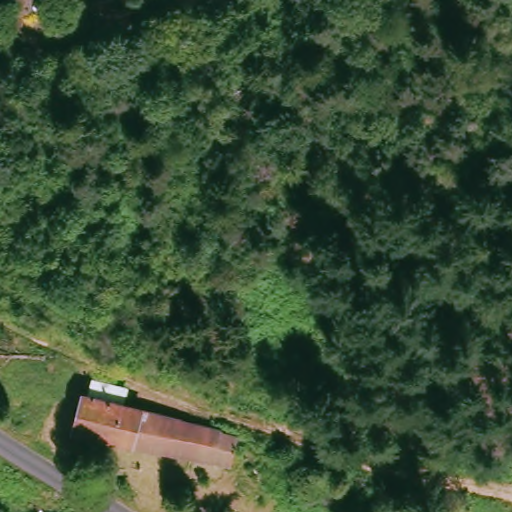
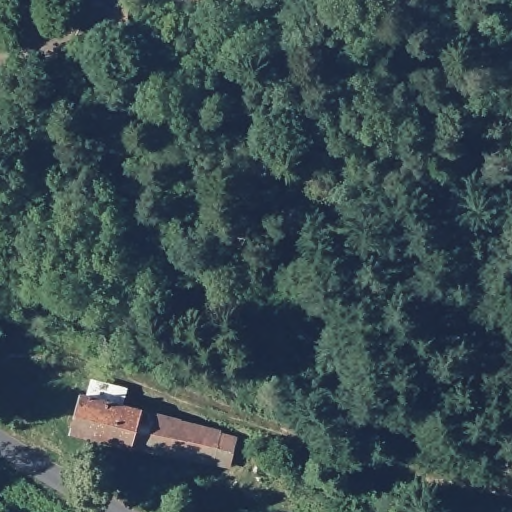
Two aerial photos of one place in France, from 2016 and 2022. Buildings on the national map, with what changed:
unchanged [(118,9),(136,6),(138,34),(118,40),(118,9)]
unchanged [(228,464),(128,445),(66,426),(75,394),(83,395),(87,380),(122,391),(118,406),(235,436),(228,464)]

